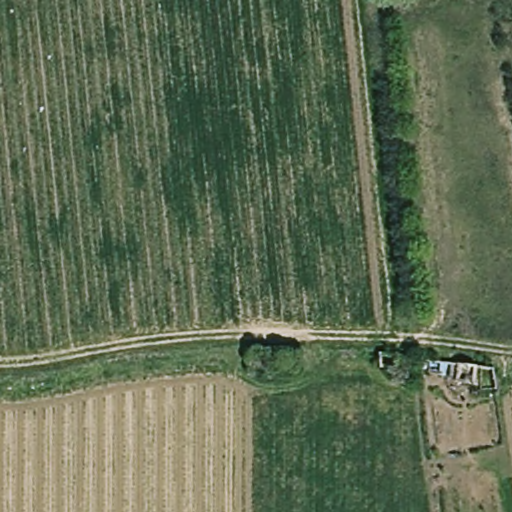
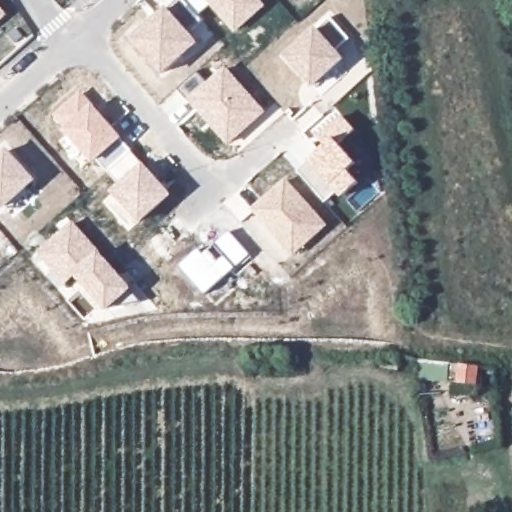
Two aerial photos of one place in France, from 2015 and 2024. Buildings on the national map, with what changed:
new [(170,9),(178,0),(261,0),(266,5),(235,34),(211,4),(198,17),(203,22),(192,35),(199,43),(165,76),(131,39),(167,6),(170,9)]
new [(0,21),(0,7),(7,15),(0,21)]
new [(284,56),(316,26),(318,29),(332,19),(350,39),(338,50),(345,60),(313,89),(284,56)]
new [(267,112),(229,146),(188,100),(178,87),(198,71),(208,82),(226,66),(267,112)]
new [(172,195),(141,224),(111,191),(120,183),(99,159),(93,164),(64,130),(66,129),(54,116),(83,90),(93,104),(122,137),(144,162),(172,195)]
new [(297,171),(309,159),(325,144),(318,135),(342,115),(355,130),(340,144),(357,163),(348,170),(357,180),(341,196),(335,188),(325,204),(297,171)]
new [(5,209),(0,204),(0,152),(6,147),(36,180),(5,209)]
new [(329,225),(294,257),(252,209),(287,179),(329,225)]
new [(99,251),(134,288),(107,312),(75,277),(66,285),(38,252),(73,221),(99,251)]
new [(203,255),(230,231),(251,254),(205,296),(179,266),(199,249),(203,255)]
unchanged [(399,356),(399,370),(381,366),(381,354),(399,356)]
unchanged [(475,383),(458,381),(460,364),(477,365),(475,383)]

